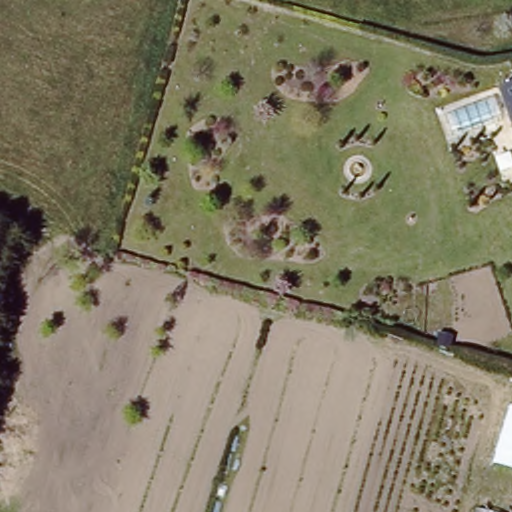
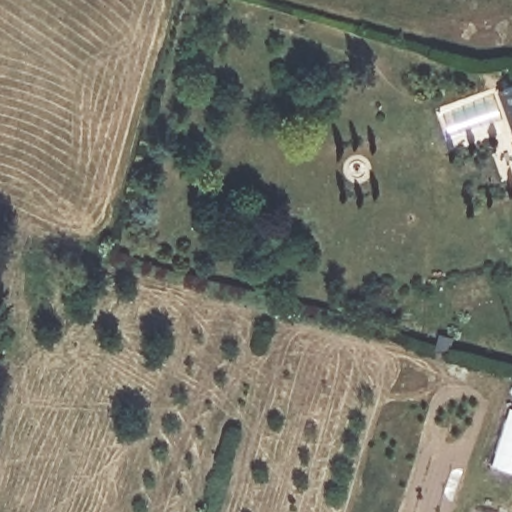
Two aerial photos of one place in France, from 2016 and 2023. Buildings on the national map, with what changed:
unchanged [(512,90),(512,117),(504,92),(512,90)]

